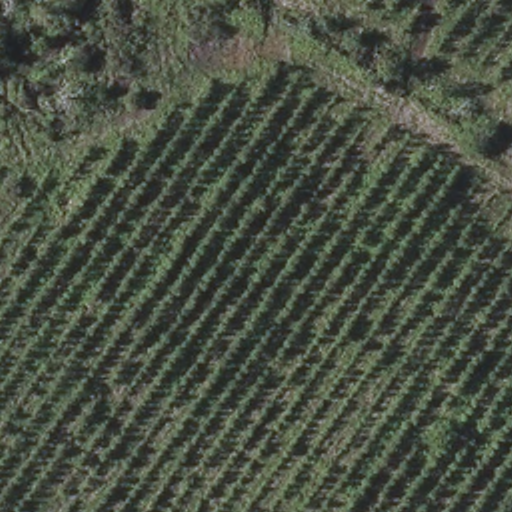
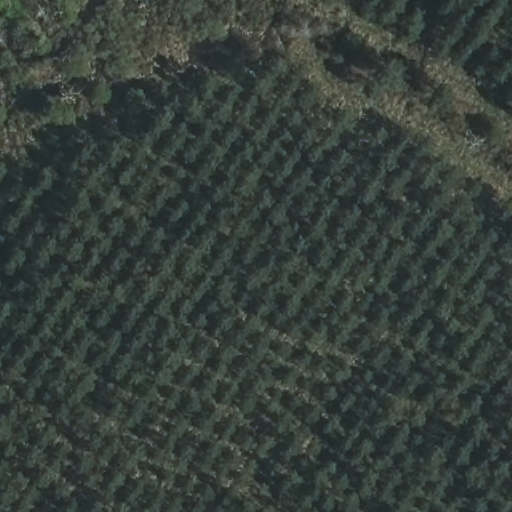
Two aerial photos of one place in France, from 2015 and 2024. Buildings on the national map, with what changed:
[]

